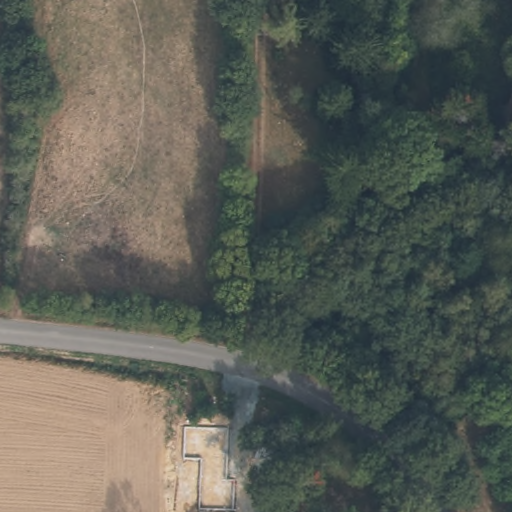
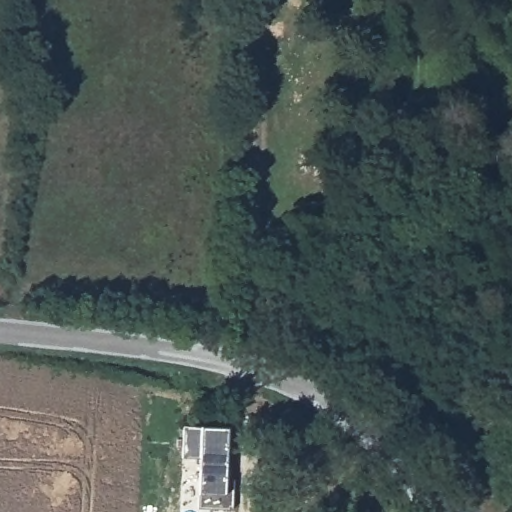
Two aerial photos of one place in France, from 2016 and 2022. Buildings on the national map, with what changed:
unchanged [(503,126),(507,96),(509,83),(512,83),(512,127),(503,126)]
unchanged [(369,162),(375,170),(367,175),(372,185),(339,206),(328,189),(362,167),(369,162)]
demolished [(237,453),(229,453),(201,451),(191,451),(192,422),(202,422),(230,425),(238,425),(237,453)]
new [(237,453),(229,453),(201,451),(191,451),(192,422),(202,422),(230,425),(238,425),(237,453)]
new [(226,453),(225,480),(235,480),(234,510),(199,508),(197,493),(201,451),(226,453)]

